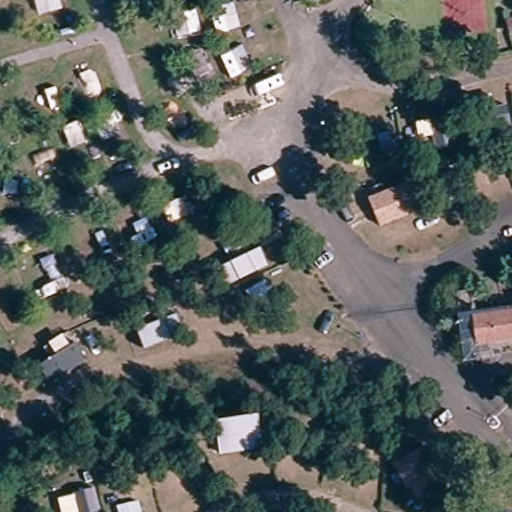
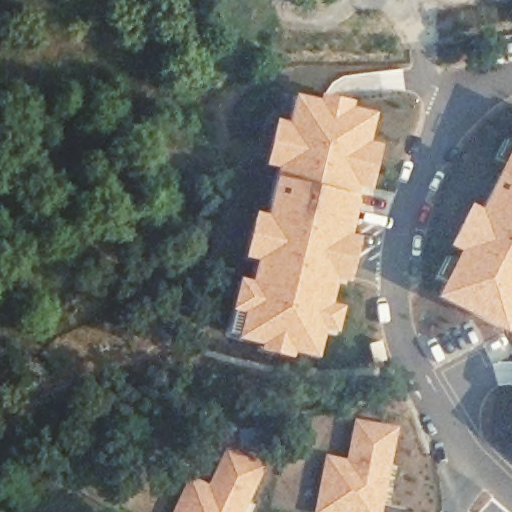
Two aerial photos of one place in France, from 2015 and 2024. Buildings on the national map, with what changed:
new [(238,277),(249,279),(253,262),(242,259),(254,211),(264,213),(274,170),(263,166),(274,119),(285,121),(293,93),(316,98),(317,93),(353,102),(353,105),(376,111),(369,140),(381,144),(369,192),(362,190),(350,234),(359,236),(348,283),(337,281),(332,301),(344,304),(337,334),(324,332),(318,359),(294,353),(292,359),(257,350),(258,346),(225,337),(238,277)]
demolished [(415,106),(420,146),(402,149),(397,109),(415,106)]
new [(446,295),(512,157),(512,328),(446,295)]
demolished [(426,209),(395,220),(388,194),(398,191),(398,184),(415,179),(426,209)]
demolished [(469,288),(474,311),(512,304),(512,339),(497,340),(499,352),(460,355),(452,289),(469,288)]
new [(345,457),(353,417),(399,425),(382,512),(314,512),(324,453),(345,457)]
new [(443,471),(438,473),(444,487),(417,500),(412,488),(407,490),(394,459),(429,443),(443,471)]
new [(207,483),(224,446),(267,463),(246,512),(171,512),(188,475),(207,483)]

